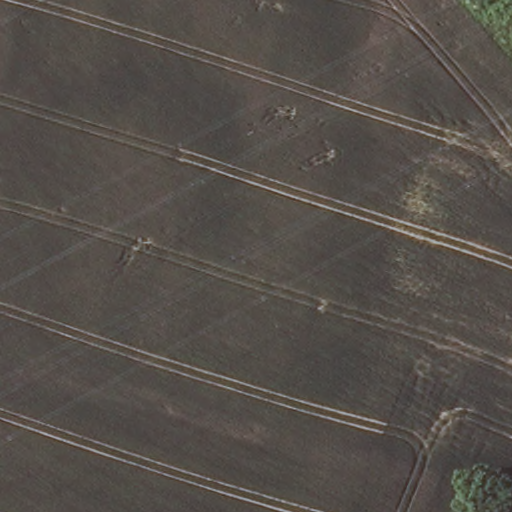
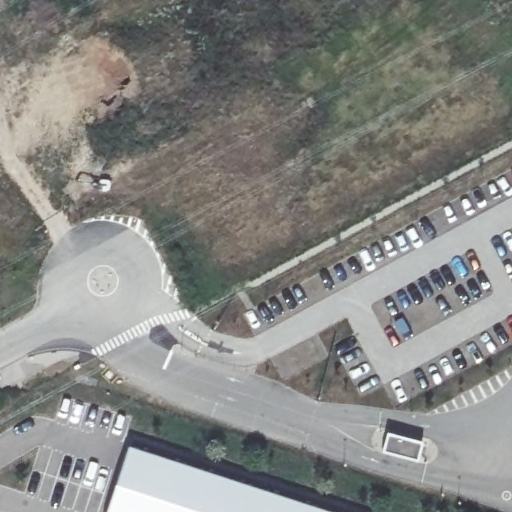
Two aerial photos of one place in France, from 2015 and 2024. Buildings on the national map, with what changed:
new [(420,441),(416,461),(379,452),(385,432),(420,441)]
new [(129,445),(338,512),(107,512),(129,445)]

